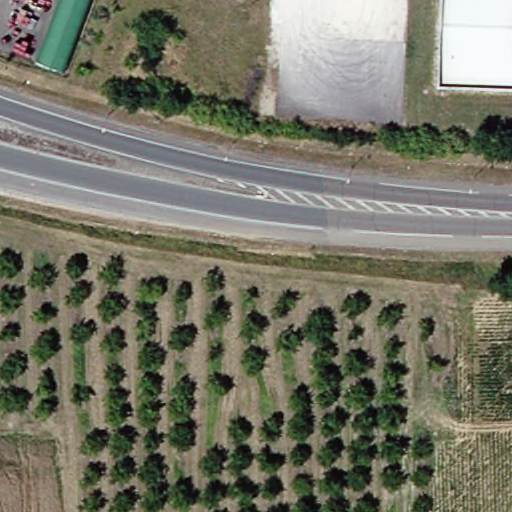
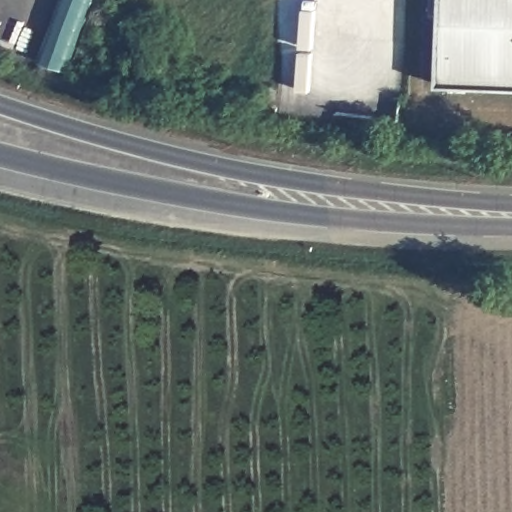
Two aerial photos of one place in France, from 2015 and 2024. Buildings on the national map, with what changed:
unchanged [(36,60),(59,0),(95,0),(67,72),(36,60)]
unchanged [(449,0),(512,0),(512,91),(446,89),(449,0)]

